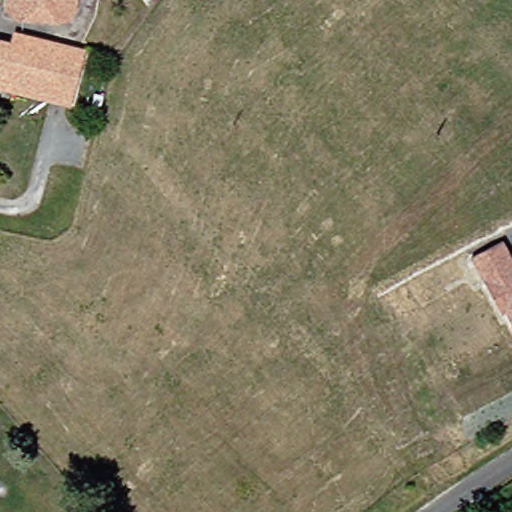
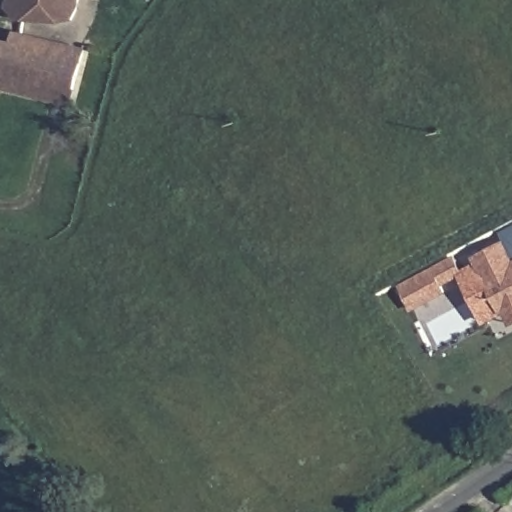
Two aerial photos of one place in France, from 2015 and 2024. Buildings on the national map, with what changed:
unchanged [(12,18),(0,2),(0,0),(63,0),(58,22),(12,18)]
unchanged [(70,90),(51,86),(49,89),(0,77),(0,45),(7,47),(10,37),(78,51),(70,90)]
unchanged [(0,77),(49,89),(51,86),(70,90),(66,105),(0,90),(0,77)]
unchanged [(505,313),(501,315),(472,259),(489,250),(503,243),(512,261),(512,327),(505,313)]
new [(455,256),(466,275),(443,287),(447,293),(414,311),(400,286),(455,256)]

